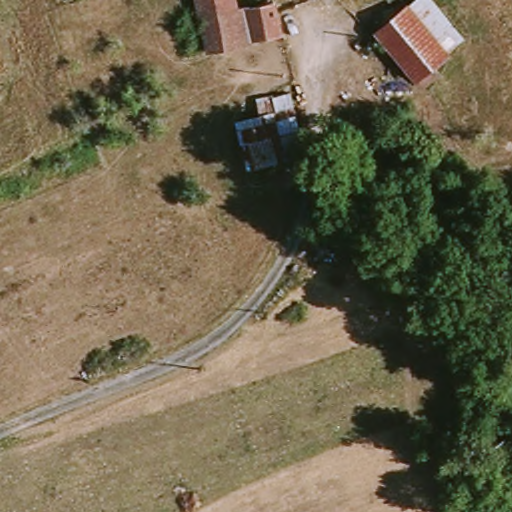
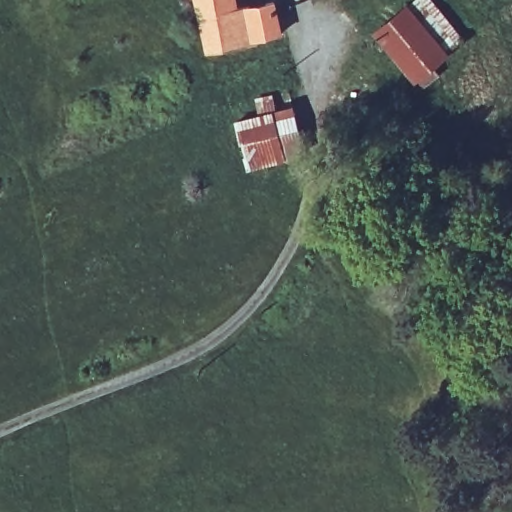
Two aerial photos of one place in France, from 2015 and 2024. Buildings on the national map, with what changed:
unchanged [(268,34),(269,40),(225,50),(218,20),(212,0),(249,0),(252,10),(262,9),(287,2),(295,28),(268,34)]
unchanged [(387,28),(419,0),(448,0),(479,37),(429,80),(387,28)]
unchanged [(254,119),(290,110),(286,95),(301,90),(305,105),(314,145),(265,155),(254,119)]

